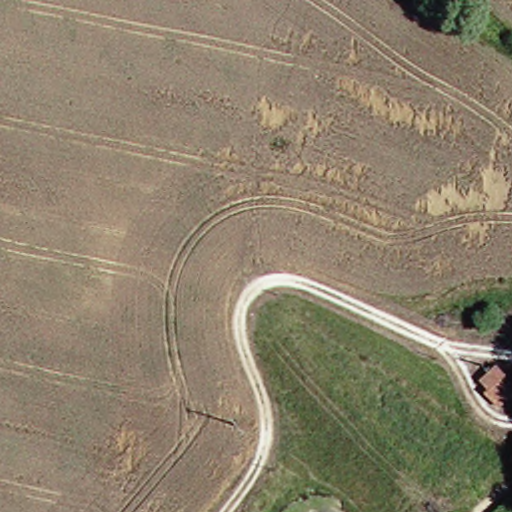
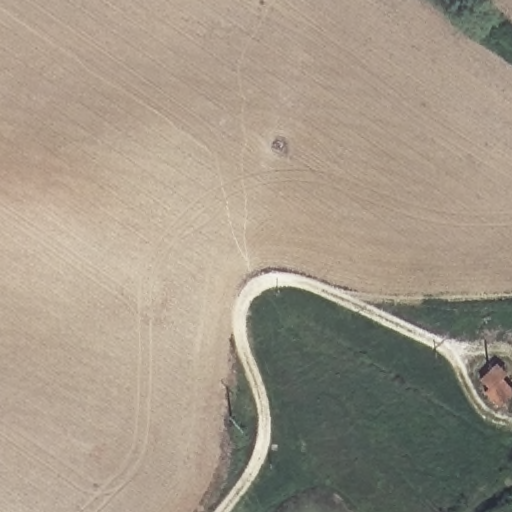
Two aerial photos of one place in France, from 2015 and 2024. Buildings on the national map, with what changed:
unchanged [(487,392),(492,386),(485,378),(498,363),(508,371),(503,377),(512,387),(512,394),(499,406),(487,392)]

